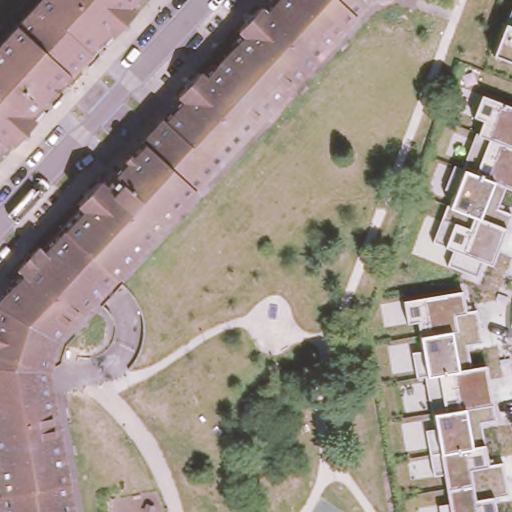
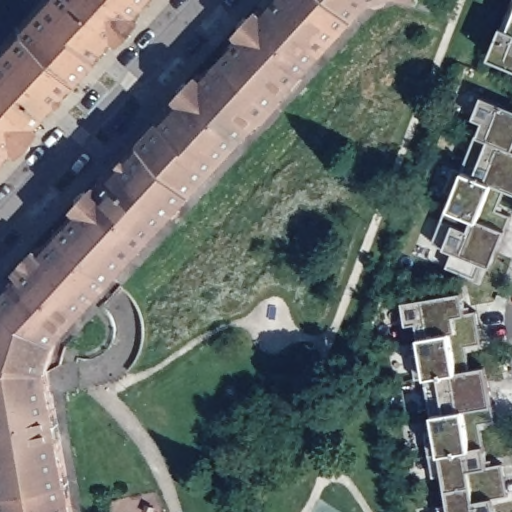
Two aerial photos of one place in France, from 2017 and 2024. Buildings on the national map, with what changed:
unchanged [(133,12),(112,35),(108,32),(89,54),(86,50),(48,91),(51,95),(31,117),(33,120),(12,142),(10,140),(0,151),(0,43),(35,5),(40,0),(138,0),(130,9),(133,12)]
unchanged [(48,376),(0,385),(0,310),(15,295),(12,291),(22,282),(17,277),(37,255),(44,260),(85,215),(79,210),(99,189),(103,192),(122,172),(123,174),(165,129),(163,127),(181,108),(177,104),(197,82),(201,85),(214,72),(216,72),(232,56),(230,55),(241,42),(237,38),(259,15),(263,17),(280,0),(392,0),(370,5),(60,346),(48,376)]
unchanged [(417,0),(416,1),(407,0),(417,0)]
unchanged [(512,8),(512,62),(495,55),(512,8)]
unchanged [(453,249),(446,246),(435,242),(449,205),(464,170),(477,135),(482,120),(474,117),(482,97),(512,109),(512,190),(504,186),(495,210),(510,216),(504,229),(490,265),(481,261),(474,276),(448,265),(453,249)]
unchanged [(440,507),(448,505),(440,452),(433,415),(425,375),(416,376),(413,355),(423,353),(420,335),(417,322),(407,324),(404,302),(462,293),(465,312),(475,311),(480,342),(466,345),(470,370),(485,367),(492,405),(495,420),(479,423),(483,446),(487,466),(502,465),(506,495),(483,499),(485,512),(440,512),(440,507)]
unchanged [(48,376),(53,402),(0,412),(0,385),(48,376)]
unchanged [(0,493),(0,412),(53,402),(73,512),(3,512),(0,493)]

